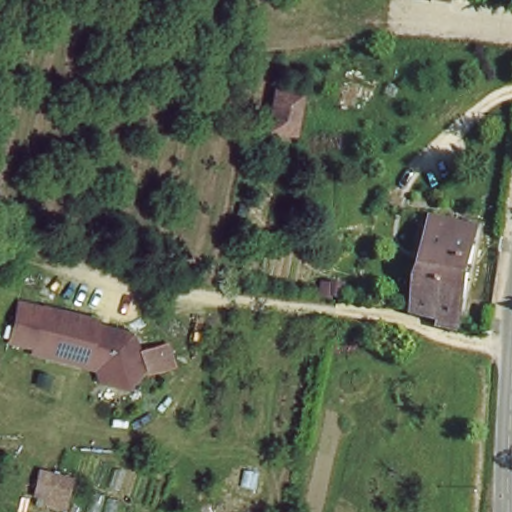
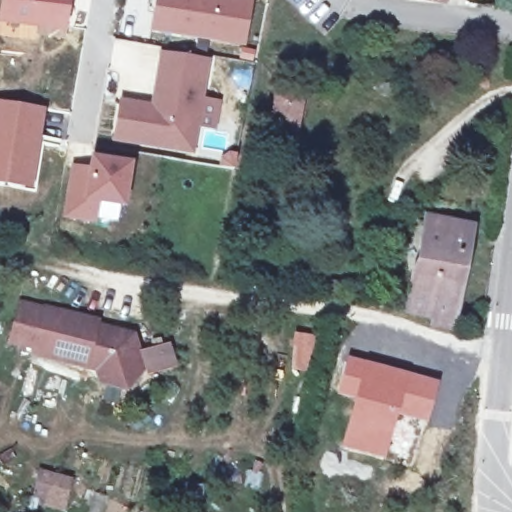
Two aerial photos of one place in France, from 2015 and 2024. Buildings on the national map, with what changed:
new [(66,32),(0,23),(0,0),(70,0),(66,32)]
new [(145,0),(239,0),(231,39),(141,21),(145,0)]
unchanged [(448,3),(430,0),(448,0),(448,3)]
new [(210,61),(203,100),(221,104),(216,134),(198,132),(193,158),(110,144),(118,100),(151,105),(160,53),(210,61)]
unchanged [(303,91),(295,132),(264,127),(272,84),(303,91)]
new [(35,191),(0,185),(0,100),(45,107),(35,191)]
new [(131,165),(124,212),(97,208),(95,228),(60,223),(63,196),(81,199),(88,157),(131,165)]
unchanged [(450,328),(450,324),(415,317),(415,277),(420,276),(416,215),(475,230),(470,333),(450,328)]
unchanged [(95,325),(136,335),(148,369),(131,389),(106,383),(101,370),(64,361),(38,355),(40,349),(13,343),(21,306),(48,312),(48,310),(75,316),(96,321),(95,325)]
new [(293,332),(316,335),(310,373),(290,370),(293,332)]
new [(347,355),(439,380),(428,423),(397,414),(385,459),(339,447),(352,399),(336,394),(347,355)]

